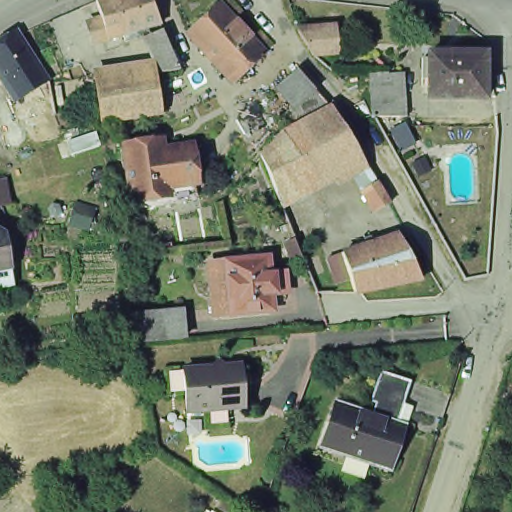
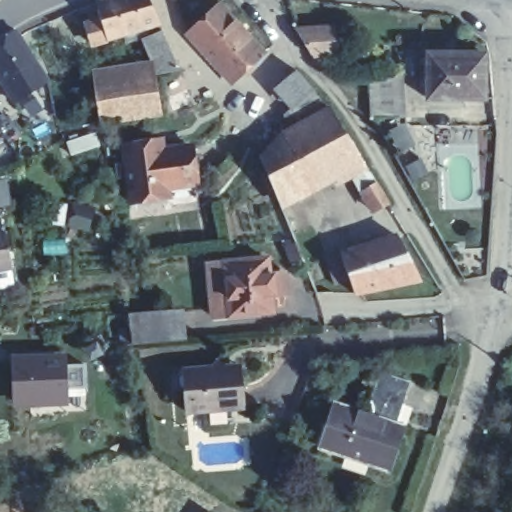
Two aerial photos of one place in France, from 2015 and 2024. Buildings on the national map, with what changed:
unchanged [(157,24),(90,43),(84,22),(97,18),(91,1),(93,0),(146,0),(157,24)]
unchanged [(265,52),(234,81),(188,32),(220,2),(265,52)]
unchanged [(17,102),(0,75),(0,40),(17,29),(21,35),(49,79),(17,102)]
unchanged [(175,70),(162,72),(146,36),(158,31),(175,70)]
unchanged [(338,58),(312,60),(297,37),(335,32),(338,58)]
unchanged [(429,53),(485,53),(485,98),(428,99),(429,79),(427,79),(422,79),(422,59),(426,59),(429,59),(429,53)]
unchanged [(400,119),(373,118),(369,79),(367,79),(365,79),(345,79),(344,60),(363,59),(386,59),(387,79),(400,79),(400,119)]
unchanged [(158,109),(97,118),(92,78),(152,68),(158,109)]
unchanged [(299,118),(295,113),(286,103),(277,92),(297,74),(307,85),(315,95),(304,105),(308,111),(299,118)]
unchanged [(376,216),(352,179),(340,187),(328,170),(278,197),(260,160),(277,140),(330,112),(357,155),(366,169),(390,207),(376,216)]
new [(5,136),(0,138),(0,128),(5,136)]
unchanged [(196,184),(169,188),(170,196),(132,201),(125,145),(152,141),(162,140),(164,149),(191,145),(196,184)]
new [(7,178),(11,205),(0,207),(0,179),(7,178)]
unchanged [(416,279),(357,291),(337,254),(392,235),(416,279)]
unchanged [(5,242),(11,276),(0,277),(0,239),(5,242)]
unchanged [(297,242),(303,258),(302,258),(292,262),(286,246),(296,243),(297,242)]
unchanged [(205,264),(222,262),(264,258),(265,275),(275,275),(277,293),(267,294),(268,311),(225,315),(209,316),(205,264)]
unchanged [(132,343),(131,328),(130,317),(182,312),(182,323),(184,339),(132,343)]
new [(12,408),(10,356),(66,354),(65,365),(84,365),(85,389),(67,390),(68,406),(12,408)]
unchanged [(217,372),(217,378),(234,377),(237,412),(180,417),(178,396),(183,396),(181,375),(205,373),(210,367),(217,372)]
unchanged [(396,428),(326,433),(330,421),(322,419),(329,399),(337,402),(365,411),(370,400),(364,398),(374,370),(404,379),(394,408),(385,406),(381,416),(398,421),(396,428)]
unchanged [(383,464),(322,445),(326,433),(396,428),(383,464)]

